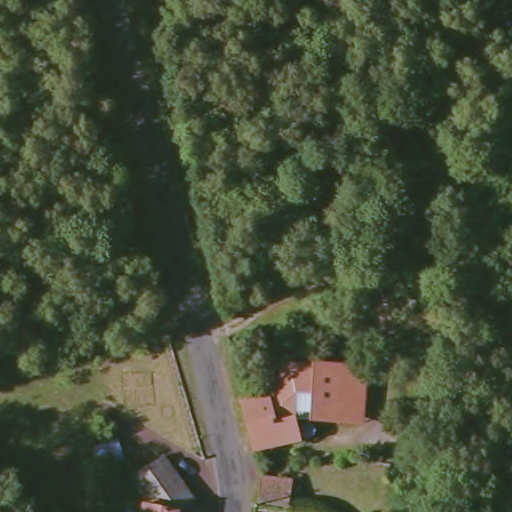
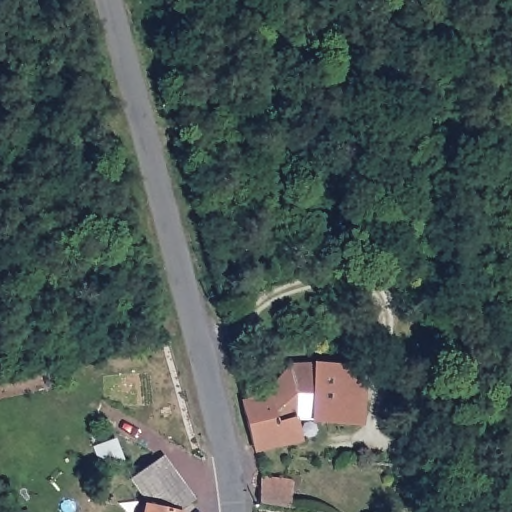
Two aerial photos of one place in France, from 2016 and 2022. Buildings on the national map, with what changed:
unchanged [(267,390),(296,360),(345,358),(341,417),(315,417),(315,391),(300,391),(282,407),(282,415),(300,415),(300,436),(257,441),(243,395),(267,390)]
unchanged [(114,437),(120,451),(101,459),(95,444),(114,437)]
unchanged [(143,503),(126,475),(161,454),(188,498),(179,504),(177,512),(140,512),(143,503)]
unchanged [(293,482),(290,509),(262,503),(262,477),(293,482)]

